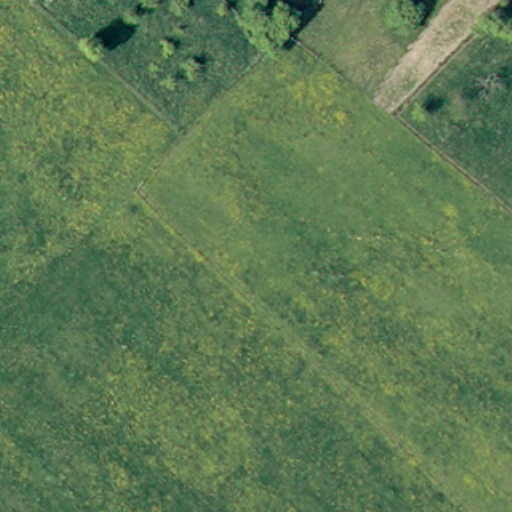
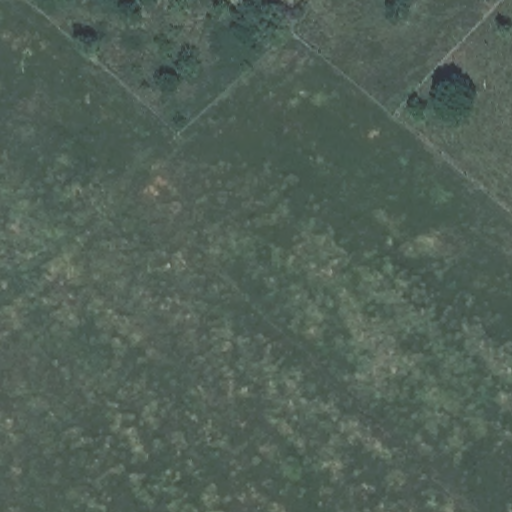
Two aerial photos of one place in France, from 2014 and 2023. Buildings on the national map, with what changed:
[]

